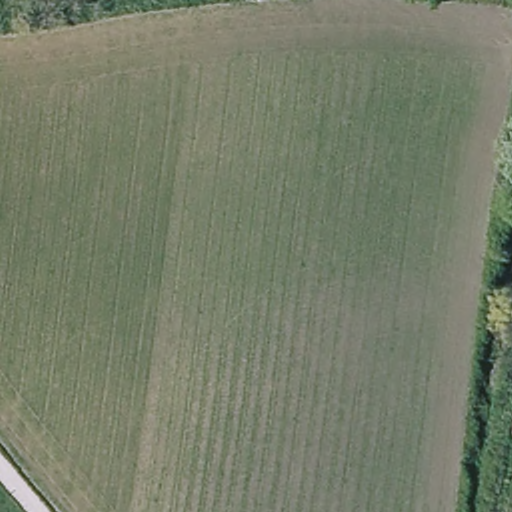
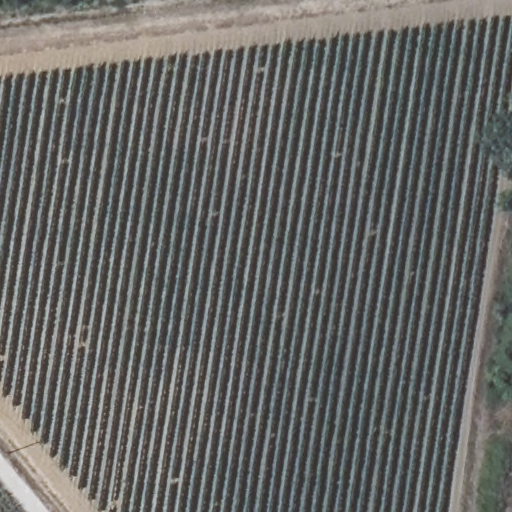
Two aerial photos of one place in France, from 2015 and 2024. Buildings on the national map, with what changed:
[]

